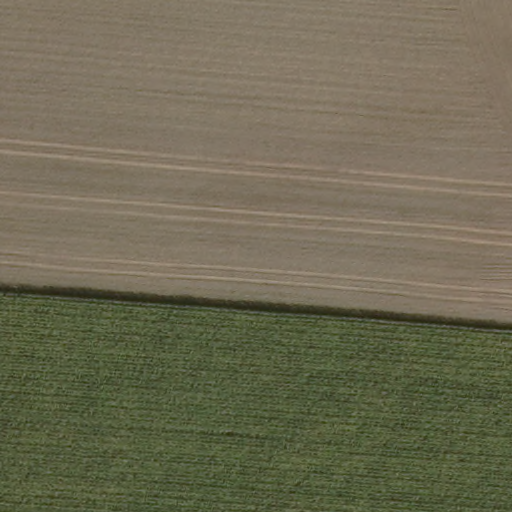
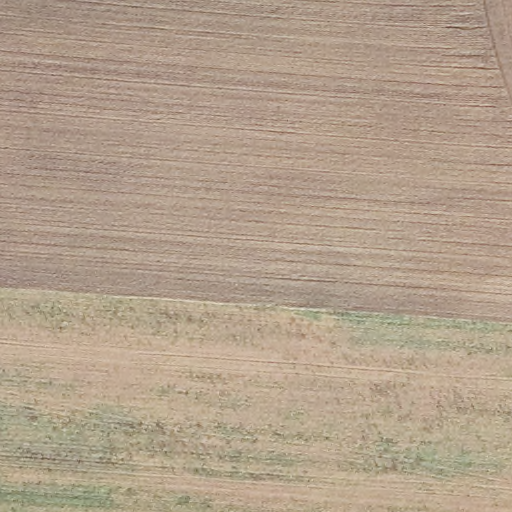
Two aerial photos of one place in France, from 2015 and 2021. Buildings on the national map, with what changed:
[]

